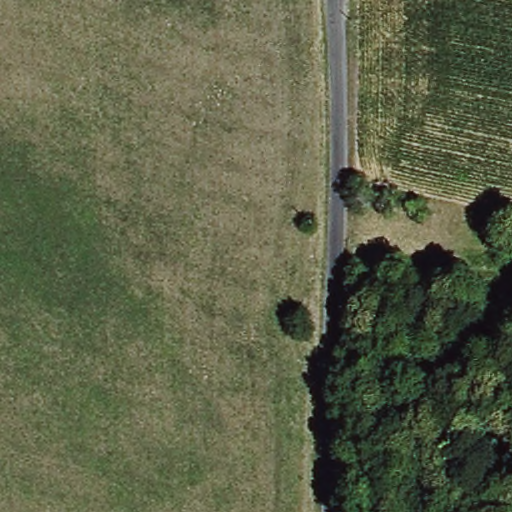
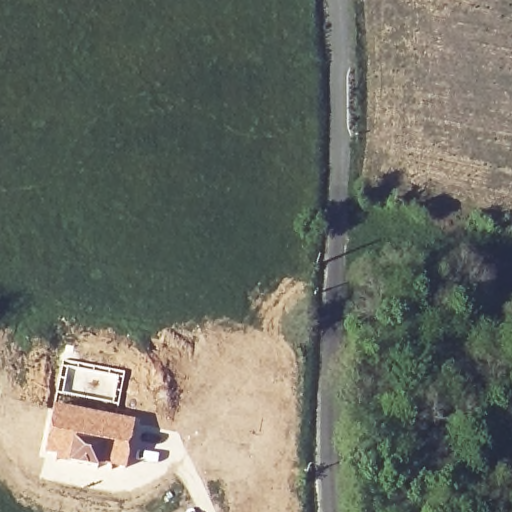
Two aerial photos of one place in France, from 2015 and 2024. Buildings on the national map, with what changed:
new [(53,404),(135,420),(128,466),(107,467),(110,447),(99,445),(48,433),(53,404)]
new [(48,433),(99,445),(98,448),(96,448),(95,452),(91,451),(91,454),(98,469),(80,467),(43,458),(48,433)]

